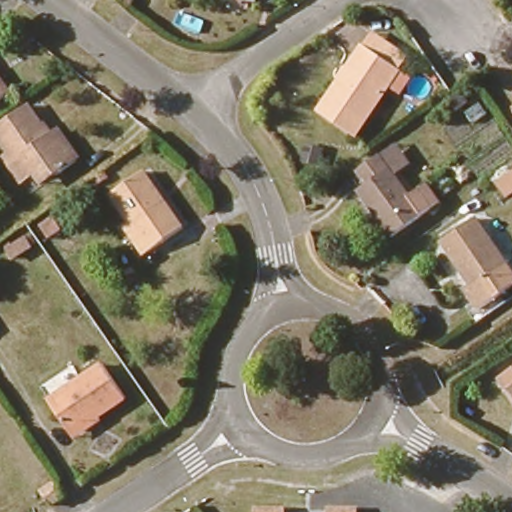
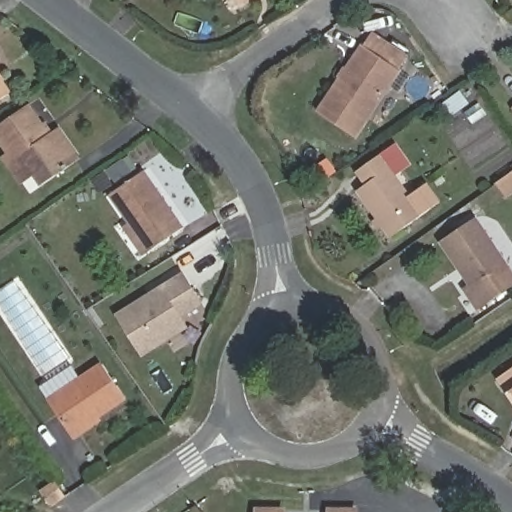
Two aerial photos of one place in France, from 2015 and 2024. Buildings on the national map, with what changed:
unchanged [(318,111),(362,45),(372,30),(411,56),(402,70),(356,137),(318,111)]
unchanged [(0,102),(0,92),(5,99),(0,102)]
unchanged [(10,160),(0,145),(0,128),(29,107),(45,132),(41,135),(45,142),(57,132),(80,163),(52,182),(46,173),(35,181),(33,178),(18,153),(10,160)]
unchanged [(326,142),(323,158),(307,155),(310,140),(326,142)]
unchanged [(392,236),(360,190),(367,185),(357,172),(382,155),(396,175),(412,196),(430,182),(442,201),(392,236)]
unchanged [(130,223),(111,195),(145,171),(183,229),(149,252),(130,223)]
new [(505,196),(496,184),(512,171),(512,191),(505,196)]
unchanged [(52,216),(62,230),(48,239),(40,225),(52,216)]
unchanged [(488,240),(498,232),(510,249),(501,256),(507,266),(497,274),(509,290),(481,310),(468,293),(475,289),(442,243),(446,240),(470,223),(475,220),(488,240)]
unchanged [(25,239),(30,246),(13,258),(8,251),(25,239)]
new [(184,274),(202,303),(181,317),(187,327),(143,355),(119,315),(184,274)]
unchanged [(102,363),(125,398),(99,415),(96,411),(67,430),(47,399),(102,363)]
unchanged [(499,377),(512,368),(512,397),(499,377)]
unchanged [(40,491),(55,482),(66,498),(51,508),(40,491)]
unchanged [(330,508),(357,509),(357,512),(330,512),(330,508)]
unchanged [(258,509),(285,509),(285,512),(258,512),(258,509)]

